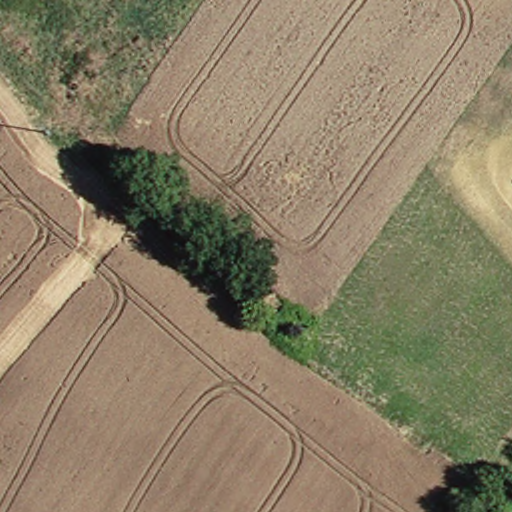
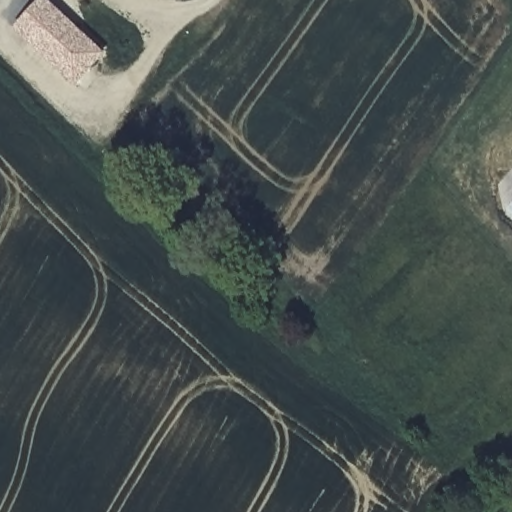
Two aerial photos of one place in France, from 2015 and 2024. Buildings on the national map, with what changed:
new [(15,24),(36,0),(47,0),(56,9),(100,49),(73,77),(30,37),(15,24)]

